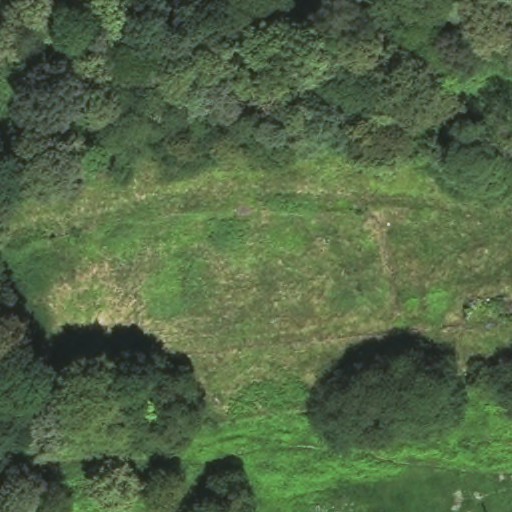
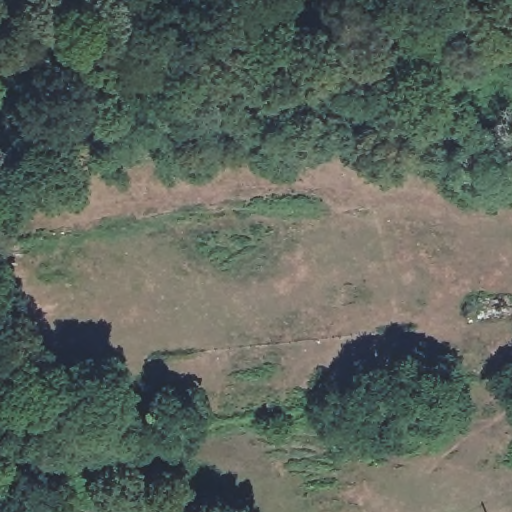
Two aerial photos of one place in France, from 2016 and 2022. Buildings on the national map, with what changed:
unchanged [(49,314),(56,327),(42,336),(35,319),(49,314)]

